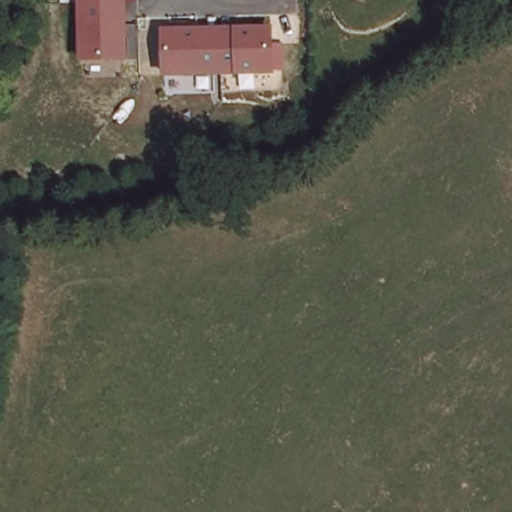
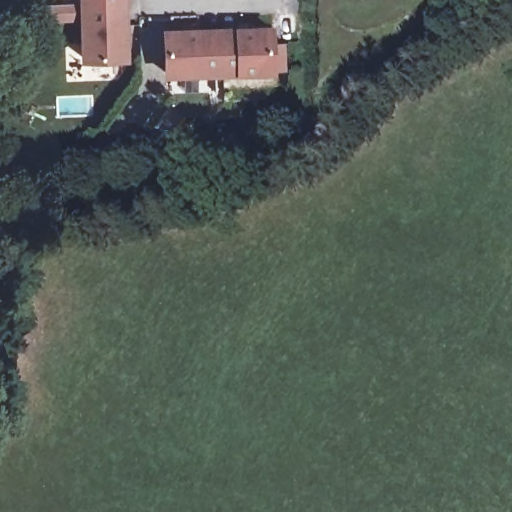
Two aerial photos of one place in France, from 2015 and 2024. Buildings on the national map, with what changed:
unchanged [(79,62),(77,0),(125,0),(125,60),(79,62)]
unchanged [(160,30),(272,26),(273,44),(284,44),(285,71),(273,71),(274,74),(163,77),(160,30)]

